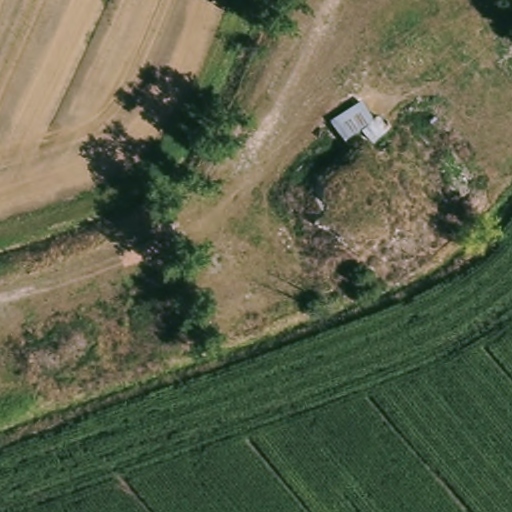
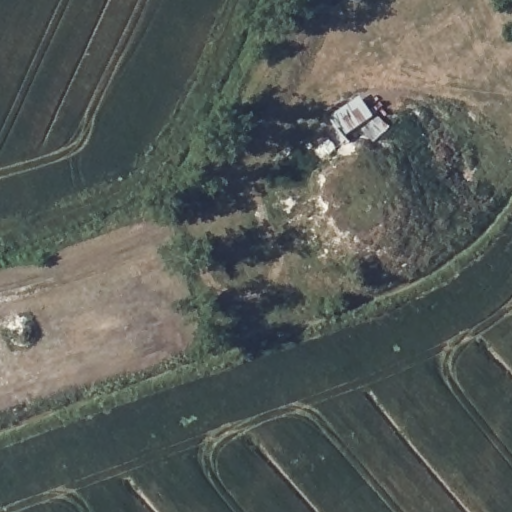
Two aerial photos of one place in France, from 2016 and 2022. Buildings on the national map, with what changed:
unchanged [(379,128),(329,166),(318,154),(339,137),(333,129),(365,108),(379,128)]

